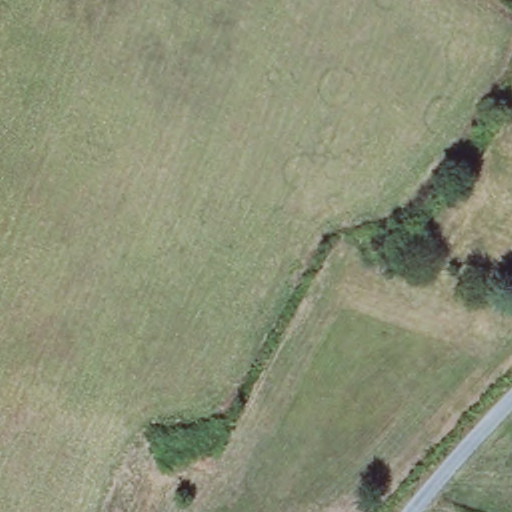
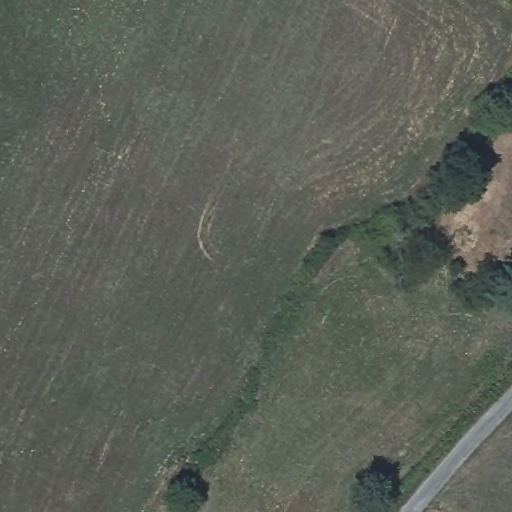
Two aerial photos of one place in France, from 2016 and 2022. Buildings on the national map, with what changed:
[]

